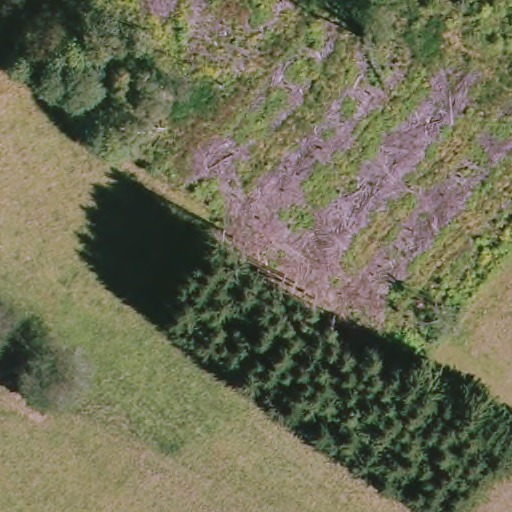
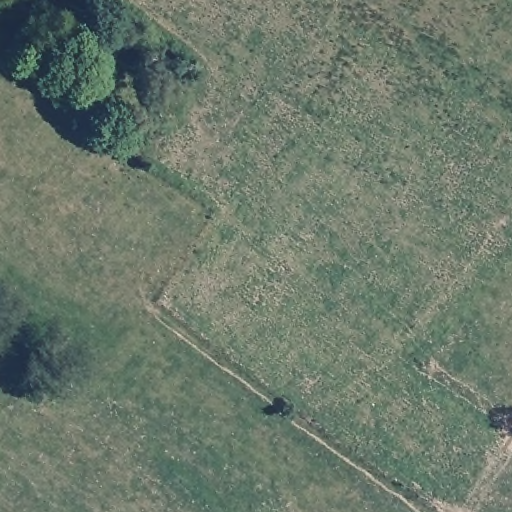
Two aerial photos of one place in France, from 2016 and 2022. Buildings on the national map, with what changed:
[]

